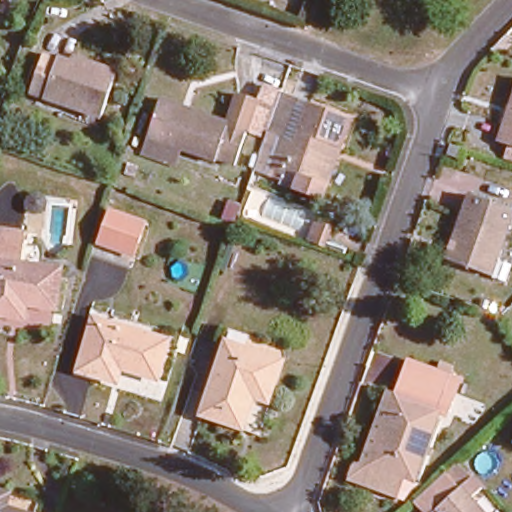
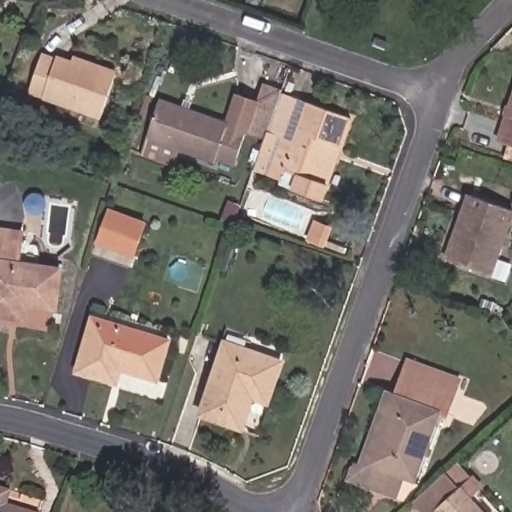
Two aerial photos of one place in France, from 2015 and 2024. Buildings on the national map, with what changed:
unchanged [(57,55),(58,52),(77,60),(80,55),(114,68),(100,111),(26,86),(40,49),(57,55)]
unchanged [(293,131),(276,126),(265,123),(279,83),(305,94),(293,131)]
unchanged [(512,85),(512,137),(498,132),(512,85)]
unchanged [(135,155),(144,133),(155,95),(221,117),(231,89),(252,96),(230,163),(179,145),(171,167),(135,155)]
unchanged [(320,201),(280,190),(284,172),(264,167),(276,126),(293,131),(305,94),(348,109),(339,137),(328,174),(320,201)]
unchanged [(437,142),(451,147),(447,159),(433,155),(437,142)]
unchanged [(473,190),(512,203),(512,214),(493,270),(457,258),(451,257),(461,227),(473,190)]
unchanged [(99,209),(137,219),(128,253),(90,241),(99,209)]
unchanged [(12,308),(0,308),(0,226),(14,227),(12,256),(58,259),(56,297),(25,295),(25,309),(12,308)]
unchanged [(159,365),(123,356),(117,370),(79,359),(90,319),(93,306),(112,313),(169,329),(159,365)]
unchanged [(238,390),(229,419),(192,408),(215,336),(273,352),(263,381),(258,395),(238,390)]
unchanged [(400,375),(408,354),(458,373),(452,393),(400,375)]
unchanged [(360,484),(367,463),(355,459),(380,391),(392,396),(400,375),(452,393),(443,415),(436,413),(408,477),(396,472),(388,494),(360,484)]
unchanged [(469,473),(483,488),(472,501),(483,512),(441,512),(436,506),(469,473)]
unchanged [(10,496),(6,512),(0,512),(0,493),(10,496)]

